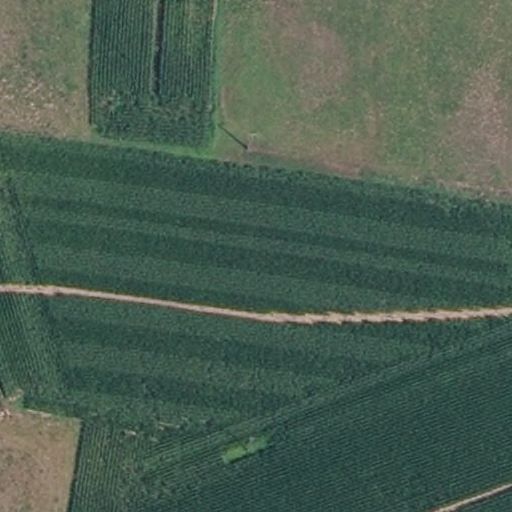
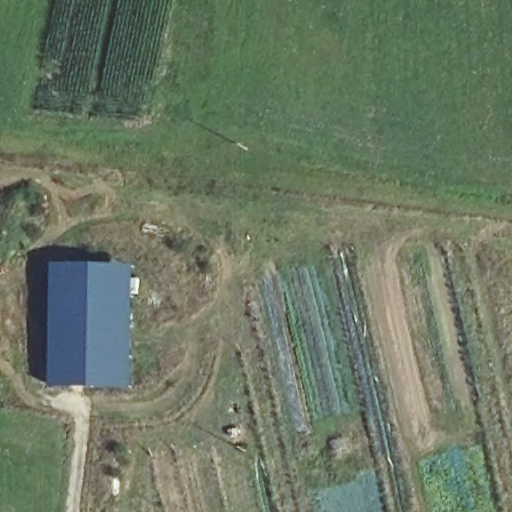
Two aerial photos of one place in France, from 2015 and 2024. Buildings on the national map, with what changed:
new [(52,388),(55,265),(137,266),(135,390),(52,388)]

